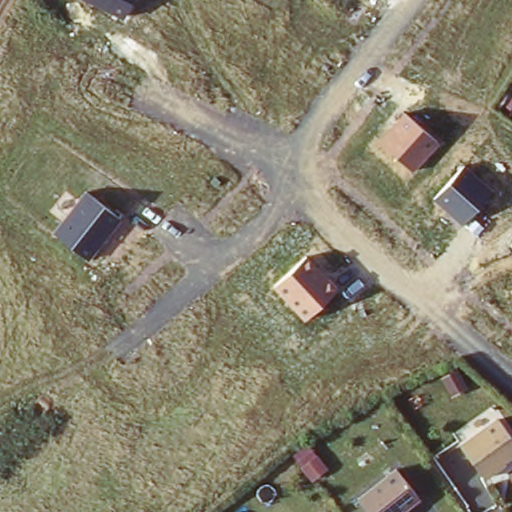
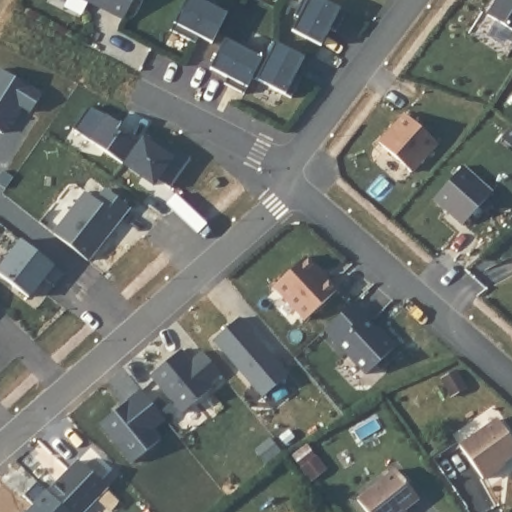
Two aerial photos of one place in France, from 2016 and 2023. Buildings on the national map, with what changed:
unchanged [(134,0),(125,18),(86,0),(134,0)]
new [(205,0),(214,4),(212,9),(226,15),(212,44),(199,38),(196,45),(170,34),(185,0),(205,0)]
new [(294,16),(302,0),(319,0),(346,12),(336,32),(330,30),(322,47),(292,32),(298,19),(294,16)]
new [(512,0),(512,32),(490,19),(501,0),(512,0)]
new [(225,44),(239,50),(241,45),(268,58),(275,44),(305,57),(297,75),(303,78),(294,99),(254,80),(247,97),(226,87),(229,81),(211,74),(225,44)]
new [(2,70),(43,97),(34,112),(19,103),(15,110),(21,113),(14,124),(7,120),(1,130),(0,130),(0,74),(2,70)]
new [(89,105),(124,127),(122,131),(142,145),(147,138),(177,160),(155,190),(73,134),(89,105)]
unchanged [(377,142),(403,111),(440,144),(412,173),(377,142)]
unchanged [(433,200),(463,164),(492,190),(462,225),(433,200)]
unchanged [(52,233),(85,190),(97,200),(105,190),(129,209),(87,261),(52,233)]
new [(24,241),(64,273),(55,286),(48,280),(31,302),(0,277),(0,270),(24,241)]
unchanged [(272,288),(306,255),(337,288),(303,321),(272,288)]
new [(355,307),(367,320),(365,321),(382,338),(385,336),(396,348),(368,376),(327,335),(355,307)]
new [(241,320),(291,375),(265,398),(215,343),(241,320)]
new [(182,353),(191,364),(202,354),(222,376),(211,386),(214,390),(184,416),(151,380),(182,353)]
new [(142,392),(162,421),(150,430),(159,442),(132,465),(102,425),(142,392)]
unchanged [(512,433),(512,457),(511,458),(512,461),(512,464),(487,479),(467,444),(503,420),(512,433)]
new [(78,461),(106,487),(83,512),(67,512),(47,493),(78,461)]
unchanged [(401,466),(423,497),(410,507),(413,512),(375,512),(363,495),(401,466)]

